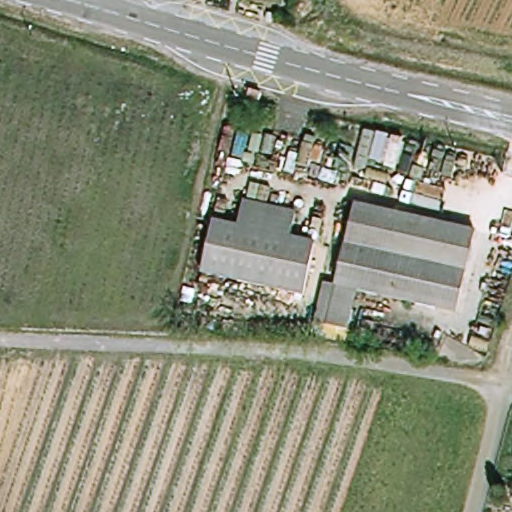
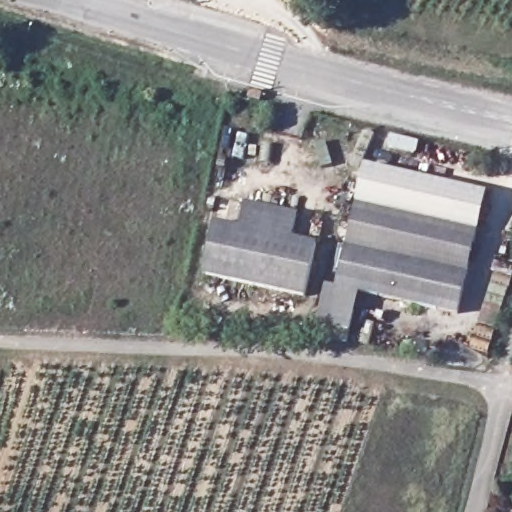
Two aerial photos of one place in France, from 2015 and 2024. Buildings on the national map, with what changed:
new [(479,230),(360,205),(354,205),(364,164),(487,193),(479,230)]
unchanged [(326,285),(341,290),(360,205),(481,231),(458,317),(362,297),(353,334),(351,348),(332,343),(326,285)]
unchanged [(208,280),(219,225),(246,231),(250,210),(297,220),(293,244),(319,249),(308,299),(208,280)]

